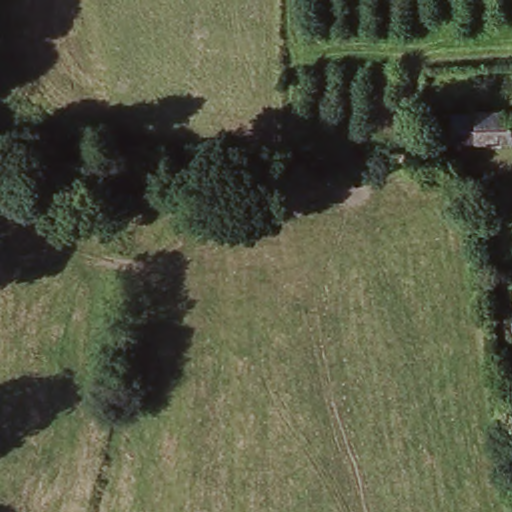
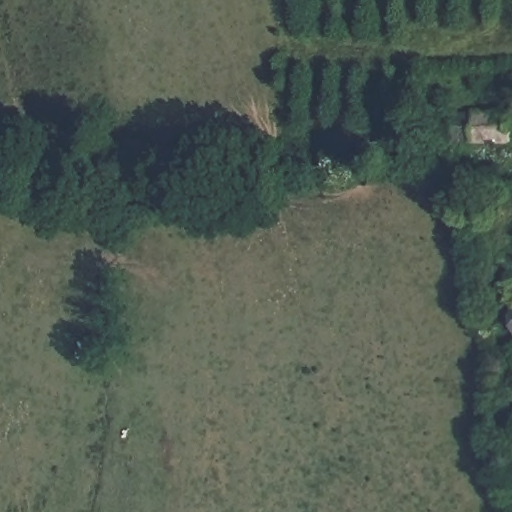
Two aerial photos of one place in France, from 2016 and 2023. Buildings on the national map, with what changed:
unchanged [(500,116),(512,118),(512,146),(482,146),(447,147),(449,120),(470,119),(500,116)]

